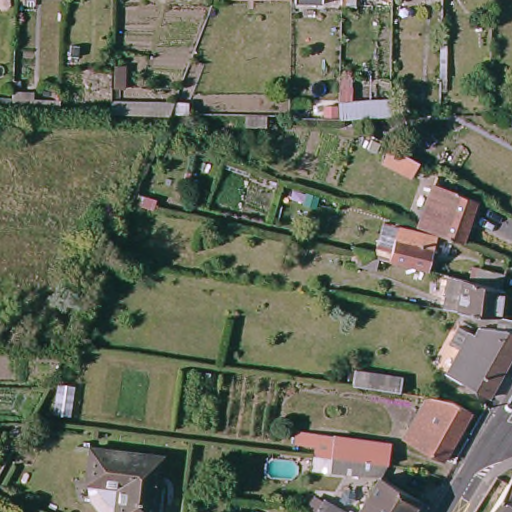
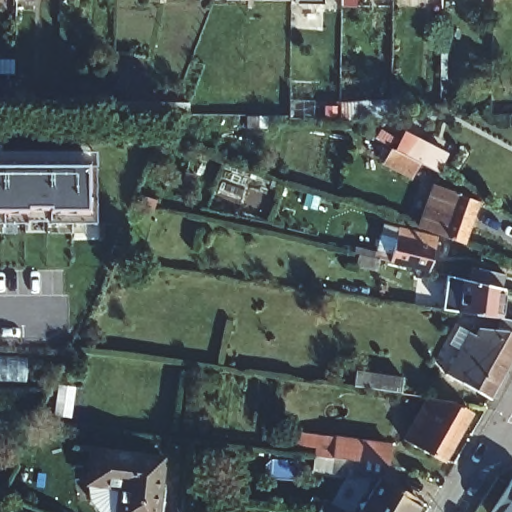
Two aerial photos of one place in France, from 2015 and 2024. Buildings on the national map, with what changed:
new [(122,62),(123,84),(113,85),(112,62),(122,62)]
unchanged [(0,110),(0,94),(15,94),(62,95),(62,111),(62,110),(15,110),(0,110)]
new [(340,107),(340,95),(386,95),(385,114),(355,114),(339,114),(340,107)]
unchanged [(108,97),(173,97),(167,113),(108,112),(108,97)]
new [(390,151),(419,167),(412,180),(383,164),(390,151)]
new [(3,154),(96,155),(96,165),(98,165),(95,222),(0,222),(0,157),(3,157),(3,154)]
unchanged [(461,233),(435,224),(420,219),(434,177),(441,180),(475,192),(461,233)]
unchanged [(397,219),(433,227),(425,261),(390,252),(397,219)]
unchanged [(469,276),(473,262),(502,268),(498,282),(502,283),(498,312),(448,310),(447,310),(440,308),(447,271),(469,276)]
unchanged [(485,395),(442,370),(467,332),(472,335),(478,327),(488,327),(498,312),(512,316),(512,349),(485,395)]
unchanged [(361,375),(407,382),(405,394),(358,387),(361,375)]
new [(73,414),(56,412),(60,383),(77,386),(73,414)]
unchanged [(465,408),(438,455),(399,432),(423,392),(446,395),(465,408)]
unchanged [(335,471),(332,468),(322,456),(322,452),(325,452),(325,433),(339,435),(395,440),(393,461),(391,460),(387,472),(335,471)]
unchanged [(80,468),(85,437),(157,446),(145,511),(107,505),(111,473),(80,468)]
unchanged [(382,474),(420,496),(410,512),(358,512),(382,474)]
unchanged [(506,476),(512,480),(512,512),(484,512),(506,476)]
unchanged [(308,508),(318,490),(357,512),(315,512),(308,508)]

